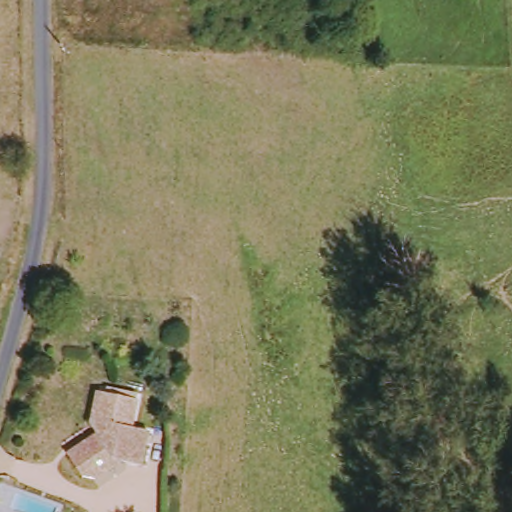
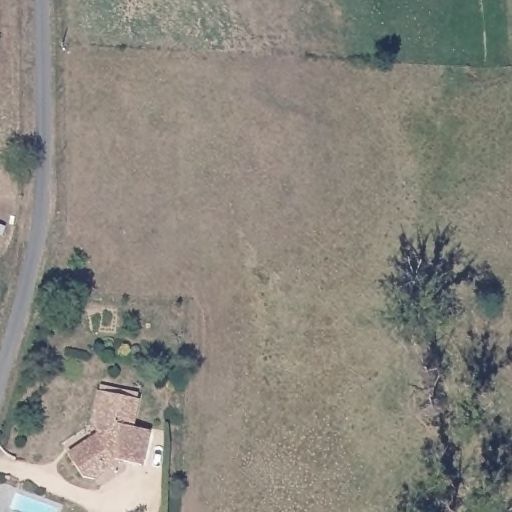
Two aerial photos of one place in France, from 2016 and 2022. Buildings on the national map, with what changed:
unchanged [(132,401),(126,428),(143,432),(136,466),(110,461),(100,468),(102,471),(89,480),(77,478),(62,455),(82,442),(87,448),(97,441),(86,426),(93,392),(132,401)]

